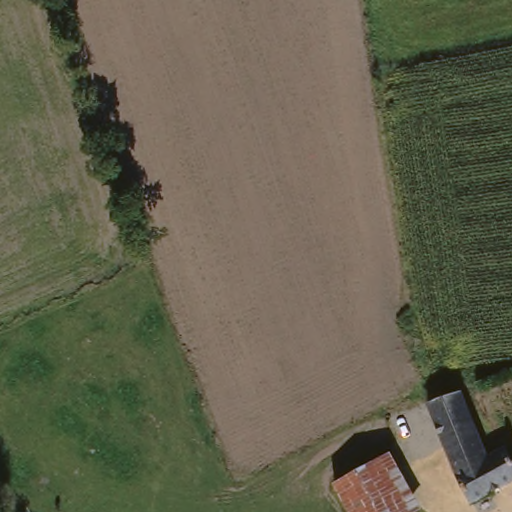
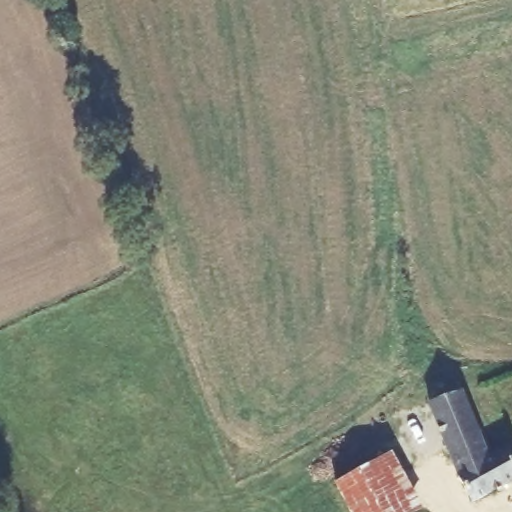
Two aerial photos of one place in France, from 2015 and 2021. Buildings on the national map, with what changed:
unchanged [(512,446),(512,483),(480,499),(463,467),(434,402),(466,389),(495,453),(512,446)]
unchanged [(424,504),(409,512),(367,512),(347,477),(395,451),(424,504)]

